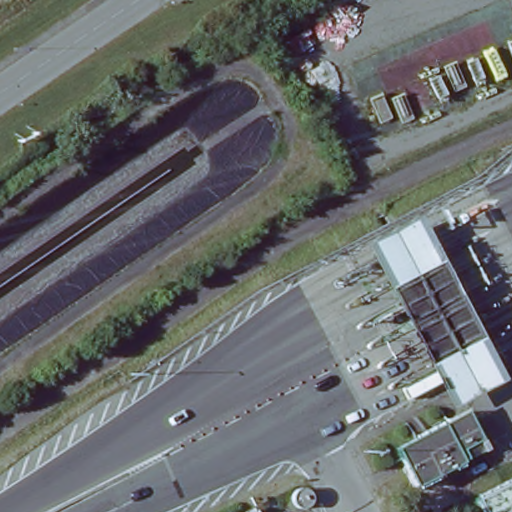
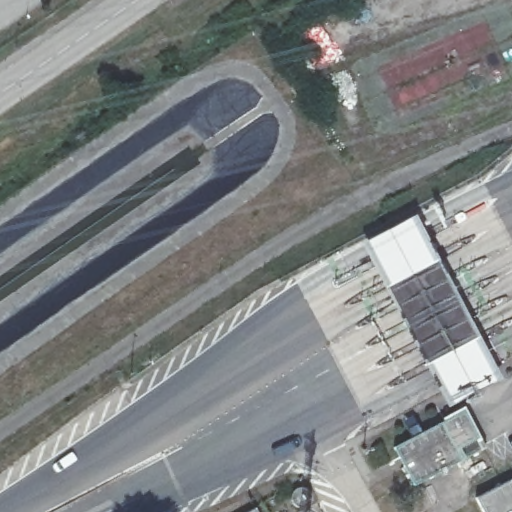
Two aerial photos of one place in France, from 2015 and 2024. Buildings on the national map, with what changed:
unchanged [(357,245),(411,216),(497,380),(443,407),(357,245)]
unchanged [(456,419),(476,456),(429,481),(409,444),(456,419)]
unchanged [(512,480),(512,512),(484,512),(477,498),(512,480)]
unchanged [(256,512),(251,512),(254,510),(256,512)]

